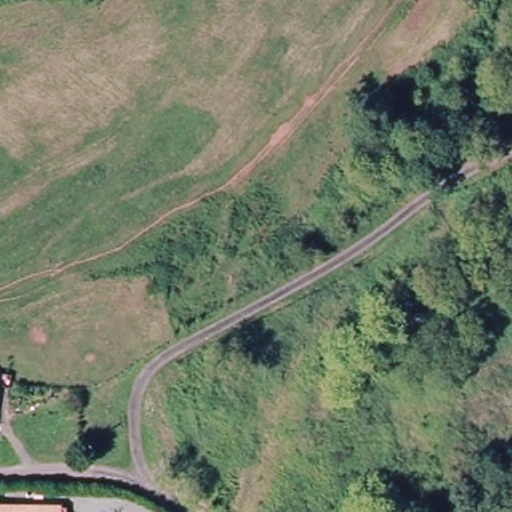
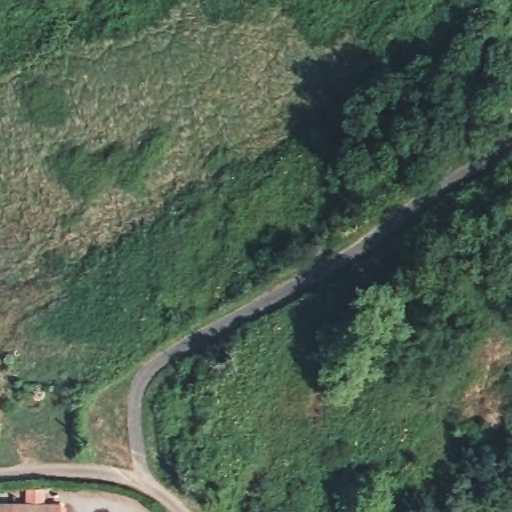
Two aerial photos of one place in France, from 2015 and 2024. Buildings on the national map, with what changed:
[]

